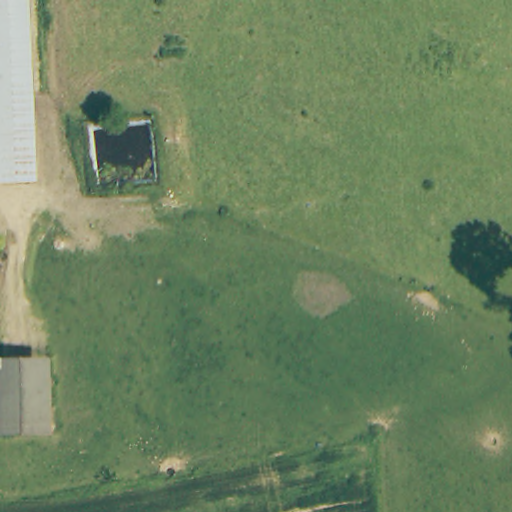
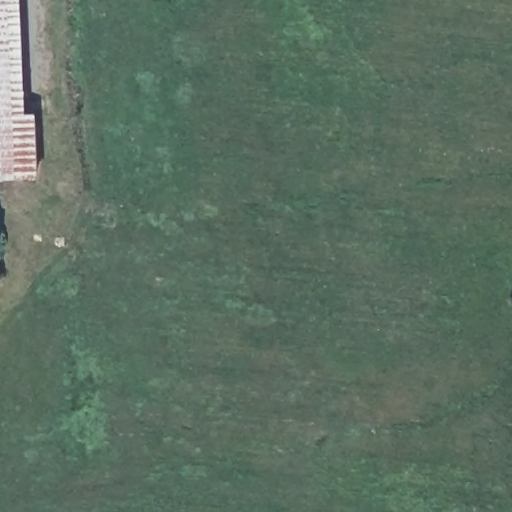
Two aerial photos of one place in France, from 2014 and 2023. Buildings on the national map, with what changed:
unchanged [(27,0),(27,121),(0,122),(0,0),(27,0)]
unchanged [(28,181),(0,182),(0,122),(27,121),(28,181)]
demolished [(50,360),(51,433),(0,433),(0,360),(50,360)]

